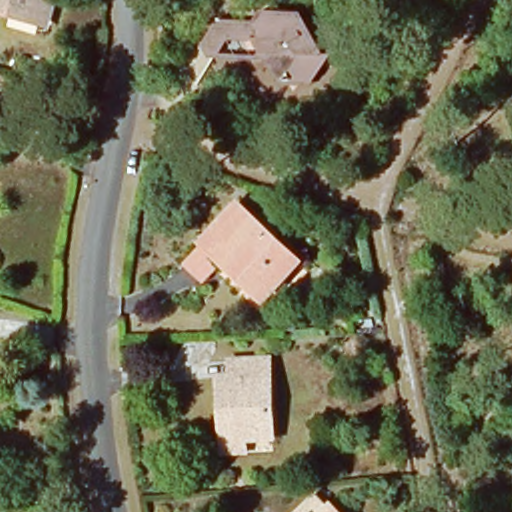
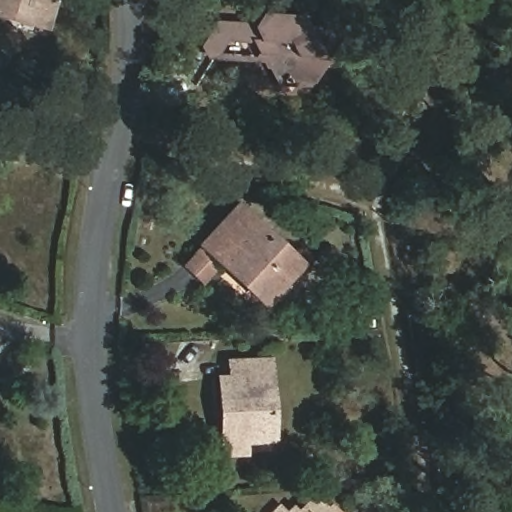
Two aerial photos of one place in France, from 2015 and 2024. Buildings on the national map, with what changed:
unchanged [(0,13),(0,0),(56,0),(48,26),(0,13)]
unchanged [(210,56),(205,44),(220,24),(256,25),(263,14),(299,15),(305,29),(331,30),(338,41),(309,84),(277,83),(266,58),(261,44),(227,43),(218,56),(210,56)]
unchanged [(186,261),(203,243),(243,200),(265,222),(263,224),(306,264),(268,304),(253,290),(258,286),(230,259),(225,264),(207,283),(186,261)]
unchanged [(222,383),(233,382),(233,366),(274,363),(278,444),(251,444),(251,456),(225,459),(224,446),(222,383)]
unchanged [(314,501),(325,512),(303,512),(314,501)]
unchanged [(330,509),(334,512),(327,512),(330,509)]

